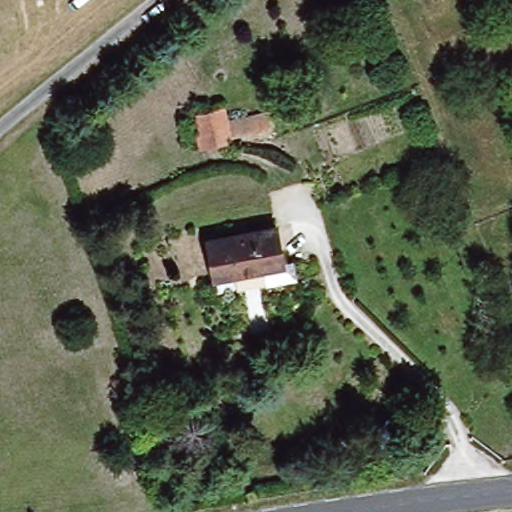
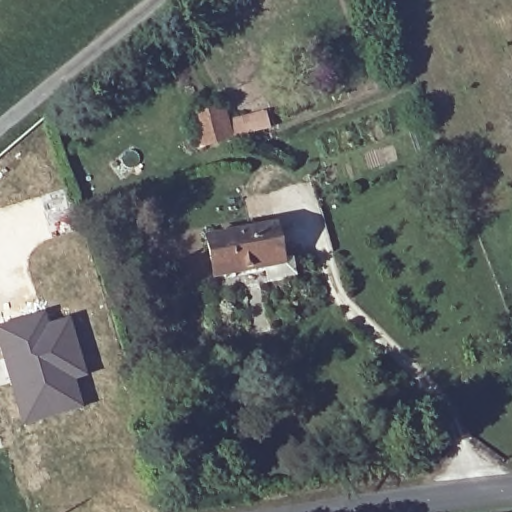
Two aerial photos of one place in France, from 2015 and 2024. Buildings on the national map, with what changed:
unchanged [(196,121),(226,114),(230,128),(200,137),(196,121)]
unchanged [(271,219),(280,254),(285,252),(288,267),(214,284),(199,235),(271,219)]
new [(44,311),(48,325),(71,318),(89,378),(76,383),(85,409),(24,428),(0,352),(0,326),(44,311)]

